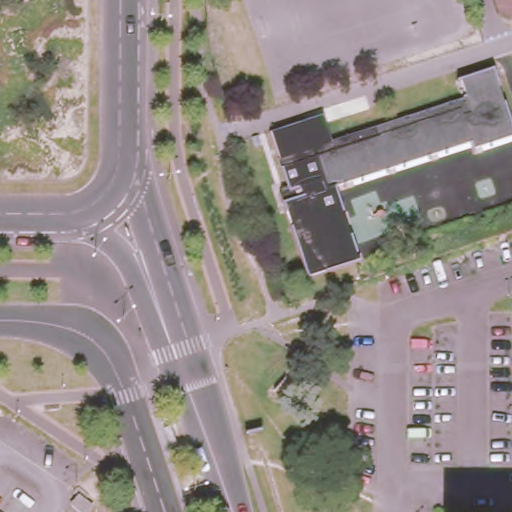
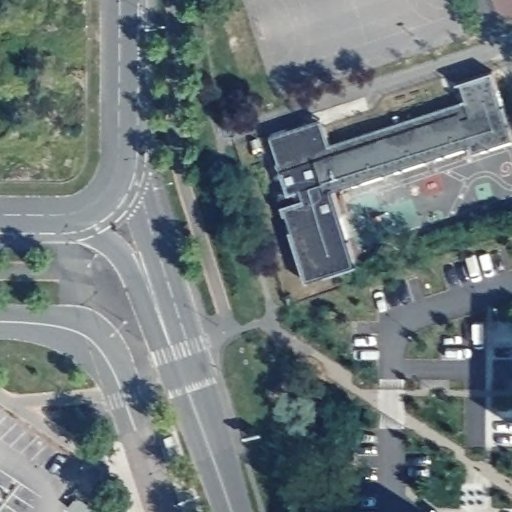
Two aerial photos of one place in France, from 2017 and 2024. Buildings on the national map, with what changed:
unchanged [(463,101),(458,85),(495,72),(512,123),(512,147),(476,159),(474,154),(339,196),(361,267),(310,283),(285,207),(306,200),(303,192),(292,195),(272,133),(309,121),(326,115),(329,123),(335,142),(463,101)]

